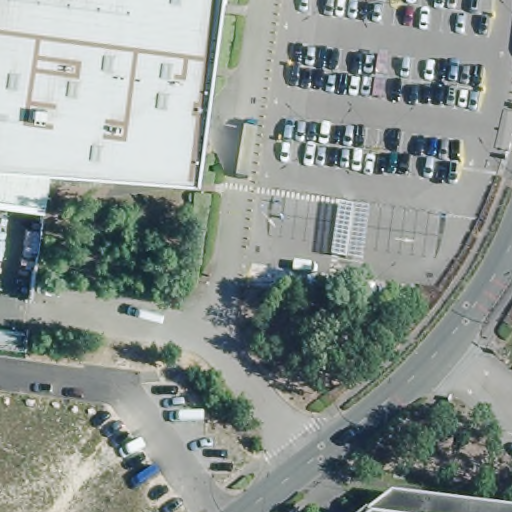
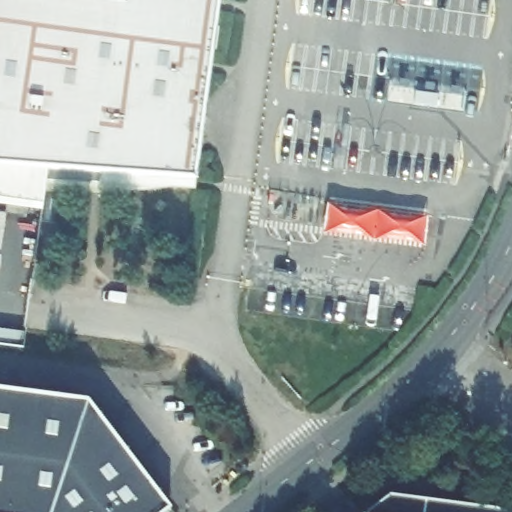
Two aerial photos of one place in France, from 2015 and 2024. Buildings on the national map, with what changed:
unchanged [(47,170),(45,182),(0,177),(0,0),(218,0),(194,181),(47,170)]
unchanged [(45,182),(42,212),(0,206),(0,177),(45,182)]
new [(424,218),(421,246),(326,234),(328,206),(424,218)]
new [(86,403),(168,511),(167,512),(0,512),(0,392),(86,403)]
unchanged [(362,508),(385,491),(512,508),(512,512),(362,512),(362,508)]

